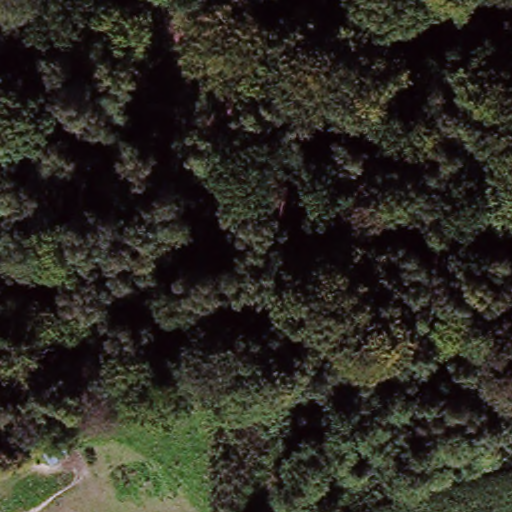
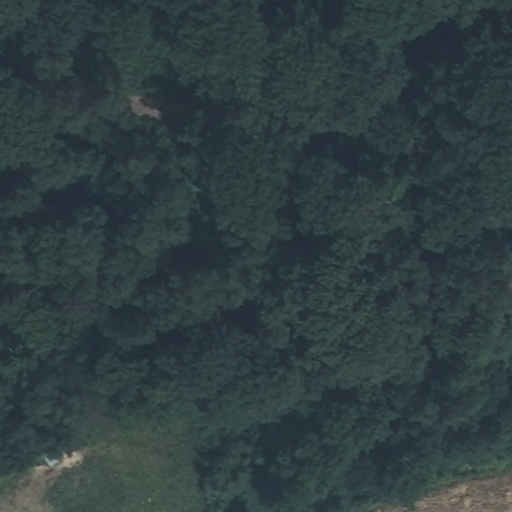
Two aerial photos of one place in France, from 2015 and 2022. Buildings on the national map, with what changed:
unchanged [(47,472),(37,450),(63,435),(75,455),(47,472)]

